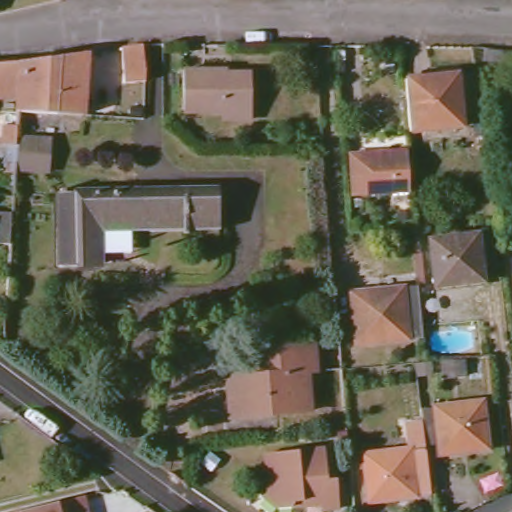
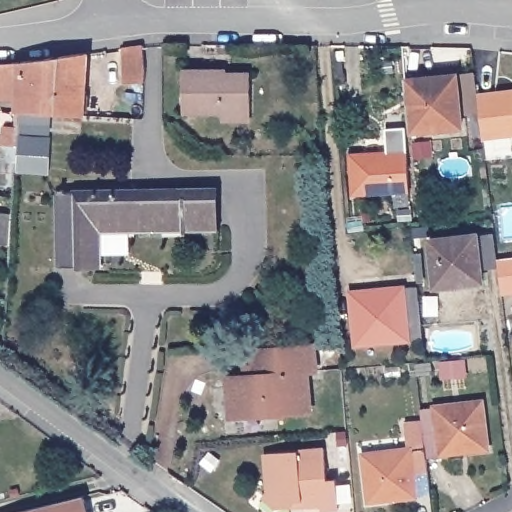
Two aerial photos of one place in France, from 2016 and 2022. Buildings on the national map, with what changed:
unchanged [(124,74),(123,47),(141,45),(141,74),(124,74)]
unchanged [(58,118),(58,57),(88,52),(86,119),(58,118)]
unchanged [(18,115),(21,62),(58,57),(58,118),(18,115)]
unchanged [(0,63),(21,62),(18,115),(0,114),(0,63)]
unchanged [(227,122),(226,112),(186,112),(185,72),(227,72),(227,75),(251,74),(253,110),(253,122),(227,122)]
new [(483,142),(480,115),(465,117),(461,75),(474,73),(478,92),(512,89),(512,139),(483,142)]
unchanged [(412,130),(406,79),(453,75),(459,126),(412,130)]
unchanged [(15,172),(17,137),(48,139),(45,174),(15,172)]
unchanged [(353,193),(348,155),(399,152),(404,189),(353,193)]
unchanged [(51,262),(51,191),(56,191),(131,191),(131,198),(211,196),(211,228),(100,232),(100,266),(57,262),(51,262)]
unchanged [(0,212),(13,212),(10,245),(0,244),(0,212)]
unchanged [(432,289),(427,243),(473,238),(489,237),(493,270),(477,272),(478,284),(432,289)]
unchanged [(351,345),(346,296),(412,291),(417,340),(351,345)]
unchanged [(224,377),(241,376),(241,367),(252,367),(251,349),(315,343),(316,370),(302,371),(305,412),(227,418),(224,377)]
unchanged [(443,377),(441,360),(464,357),(467,374),(443,377)]
unchanged [(441,455),(441,461),(426,462),(424,447),(422,425),(421,411),(479,406),(484,452),(441,455)]
unchanged [(424,447),(426,462),(430,497),(367,502),(363,457),(409,452),(407,427),(422,425),(424,447)]
unchanged [(319,478),(328,477),(329,507),(313,508),(313,510),(311,512),(298,512),(297,503),(294,500),(285,500),(283,505),(268,506),(255,495),(261,488),(258,451),(316,447),(319,478)]
unchanged [(85,494),(90,512),(10,512),(25,508),(85,494)]

